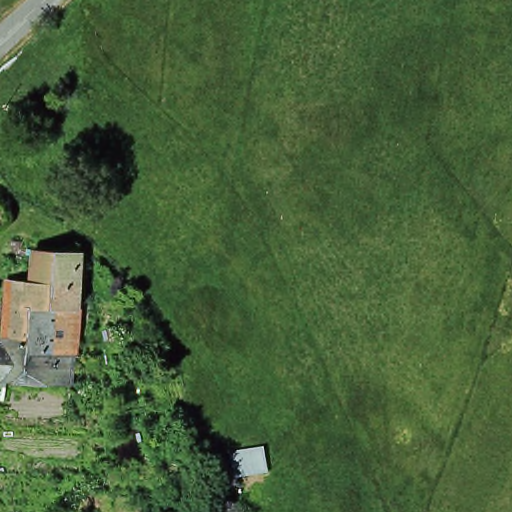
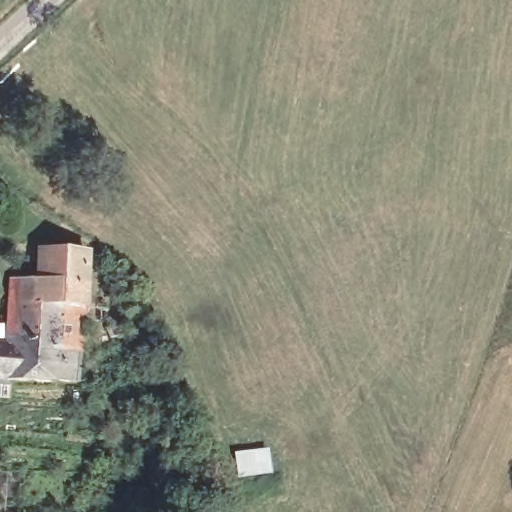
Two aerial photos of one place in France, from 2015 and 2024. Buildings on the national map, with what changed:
unchanged [(39,249),(83,254),(81,283),(37,281),(39,249)]
unchanged [(10,279),(37,281),(81,283),(79,314),(8,310),(10,279)]
unchanged [(8,310),(79,314),(74,383),(3,380),(0,379),(0,343),(4,343),(8,310)]
unchanged [(278,475),(248,480),(244,460),(274,455),(278,475)]

